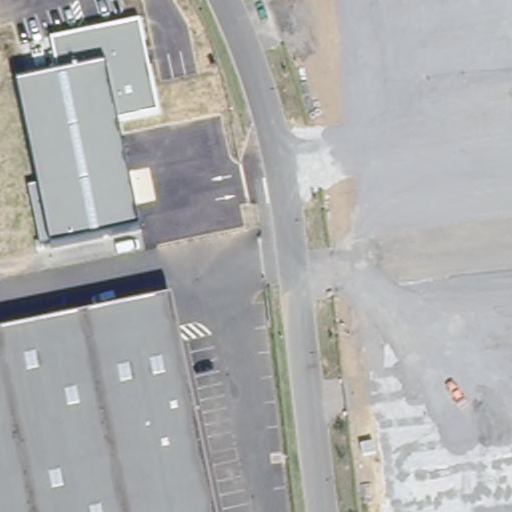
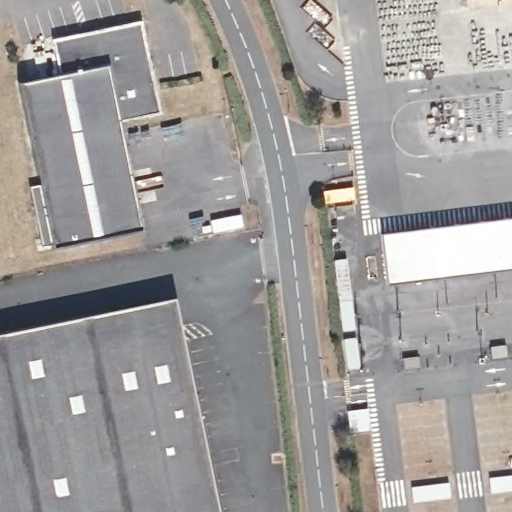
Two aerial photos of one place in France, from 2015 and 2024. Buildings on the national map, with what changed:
unchanged [(58,76),(51,39),(139,21),(159,113),(119,121),(141,229),(51,244),(41,246),(29,186),(40,186),(19,84),(58,76)]
new [(389,281),(383,232),(512,216),(512,265),(389,281)]
unchanged [(174,298),(180,328),(115,341),(109,312),(174,298)]
unchanged [(199,449),(212,512),(0,512),(0,335),(109,312),(115,341),(180,328),(205,447),(199,449)]
unchanged [(212,512),(199,449),(205,447),(219,512),(212,512)]

